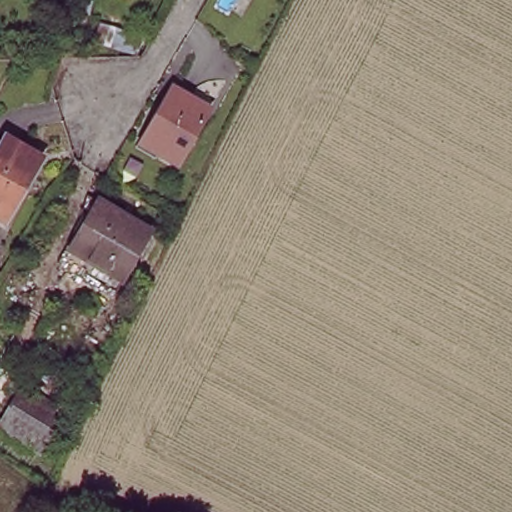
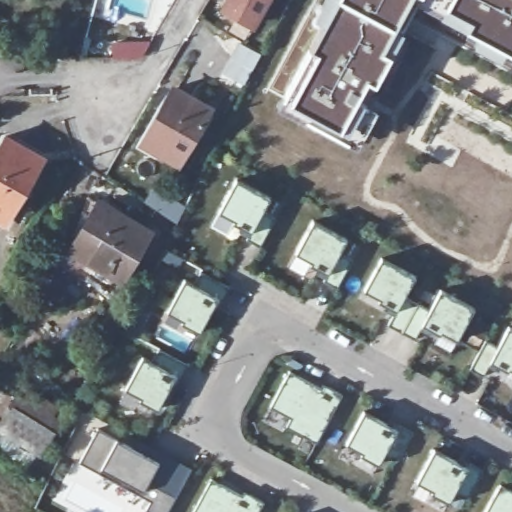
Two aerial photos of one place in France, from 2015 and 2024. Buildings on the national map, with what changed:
new [(217,9),(223,0),(267,0),(251,28),(217,9)]
new [(512,0),(512,52),(422,3),(406,27),(415,34),(384,86),(376,82),(348,130),(289,99),(342,0),(512,0)]
new [(237,56),(241,48),(255,56),(242,78),(222,67),(230,53),(237,56)]
unchanged [(210,107),(180,163),(145,143),(176,88),(210,107)]
unchanged [(3,220),(0,218),(0,148),(6,136),(41,156),(3,220)]
new [(246,238),(251,231),(233,221),(235,219),(219,210),(236,178),(271,196),(264,209),(276,216),(260,245),(246,238)]
unchanged [(180,204),(171,217),(143,200),(151,187),(180,204)]
unchanged [(137,254),(123,279),(73,249),(100,201),(151,230),(137,254)]
new [(337,287),(324,279),(328,272),(311,263),(312,260),(296,251),(314,219),(348,237),(341,251),(353,257),(337,287)]
new [(402,330),(388,324),(396,309),(379,299),(380,297),(365,288),(382,256),(416,274),(405,294),(417,301),(402,330)]
new [(223,299),(218,296),(200,330),(182,320),(183,318),(168,309),(186,277),(195,282),(201,269),(231,285),(223,299)]
new [(417,301),(430,308),(441,288),(475,306),(457,339),(442,330),(440,333),(423,323),(415,338),(402,330),(417,301)]
new [(486,338),(498,345),(509,325),(512,327),(512,368),(510,367),(508,370),(491,360),(483,375),(470,367),(486,338)]
new [(188,363),(181,377),(176,374),(158,408),(140,398),(141,396),(125,387),(143,355),(153,360),(159,347),(188,363)]
new [(317,441),(286,425),(291,416),(271,405),(290,369),(327,389),(330,385),(343,392),(317,441)]
unchanged [(25,384),(60,405),(55,414),(60,418),(53,429),(13,405),(25,384)]
unchanged [(0,427),(0,426),(13,405),(53,429),(40,451),(0,427)]
new [(397,459),(385,452),(379,463),(361,453),(363,450),(346,442),(364,409),(397,427),(400,423),(413,430),(397,459)]
new [(167,512),(151,512),(146,509),(151,499),(80,461),(98,427),(135,446),(160,460),(149,480),(176,495),(167,512)]
new [(149,480),(160,460),(135,446),(140,438),(193,468),(176,495),(149,480)]
new [(468,497),(455,491),(450,501),(432,491),(433,488),(417,480),(435,447),(468,465),(470,461),(484,468),(468,497)]
new [(238,497),(243,491),(261,501),(255,512),(191,512),(208,480),(238,497)]
new [(501,483),(512,489),(512,512),(485,512),(501,483)]
new [(151,512),(144,512),(146,509),(151,512)]

